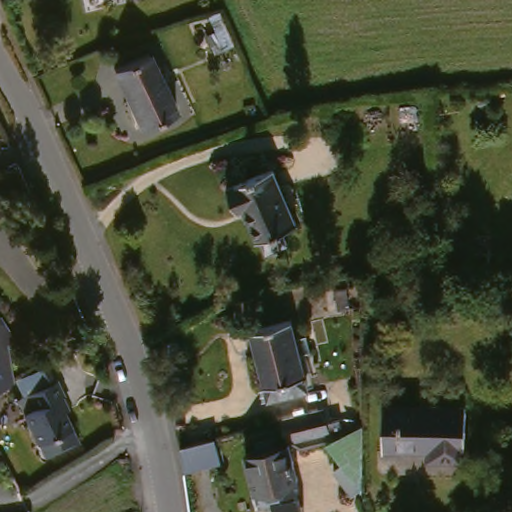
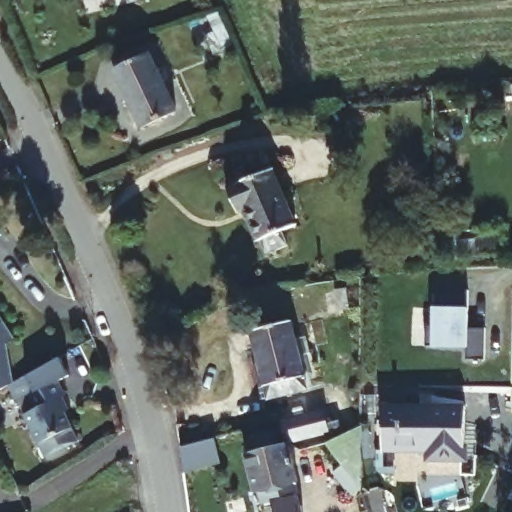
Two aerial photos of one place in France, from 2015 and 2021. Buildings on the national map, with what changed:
unchanged [(156,59),(180,114),(147,127),(123,72),(156,59)]
unchanged [(242,215),(233,192),(280,172),(304,226),(267,242),(253,211),(242,215)]
unchanged [(469,219),(470,242),(449,244),(448,220),(469,219)]
new [(466,360),(468,348),(433,347),(427,346),(428,326),(435,328),(436,308),(436,290),(468,292),(469,308),(469,328),(485,329),(484,360),(466,360)]
unchanged [(20,338),(14,341),(21,383),(0,394),(0,306),(20,338)]
unchanged [(295,326),(316,391),(280,402),(259,339),(295,326)]
unchanged [(46,451),(39,438),(23,408),(34,403),(26,390),(56,373),(66,390),(60,394),(73,420),(80,433),(46,451)]
unchanged [(440,407),(440,403),(477,402),(478,457),(441,460),(440,448),(393,450),(392,409),(440,407)]
unchanged [(297,415),(311,411),(313,418),(327,414),(334,439),(304,447),(294,450),(288,426),(299,423),(297,415)]
unchanged [(220,440),(225,463),(189,473),(184,450),(220,440)]
unchanged [(346,454),(340,447),(367,440),(368,458),(370,485),(372,492),(366,500),(349,480),(360,471),(346,454)]
unchanged [(305,487),(300,488),(304,504),(269,511),(257,460),(294,450),(305,487)]

